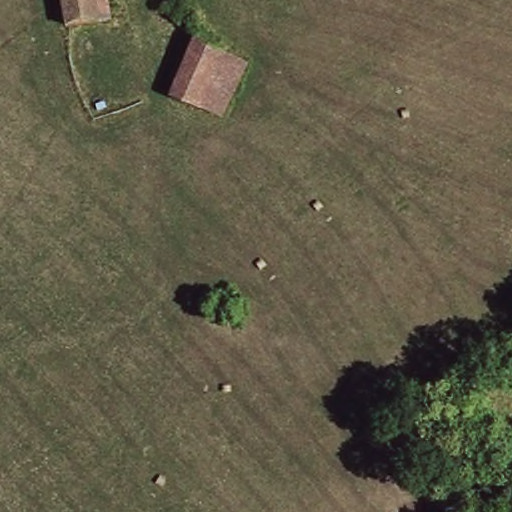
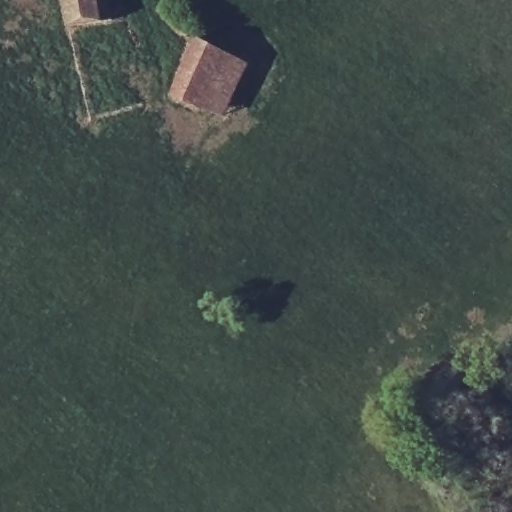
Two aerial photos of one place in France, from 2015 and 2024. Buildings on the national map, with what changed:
unchanged [(105,19),(70,27),(64,0),(100,0),(105,19)]
unchanged [(187,25),(172,12),(183,0),(187,0),(199,12),(187,25)]
unchanged [(195,40),(242,63),(217,115),(170,91),(195,40)]

